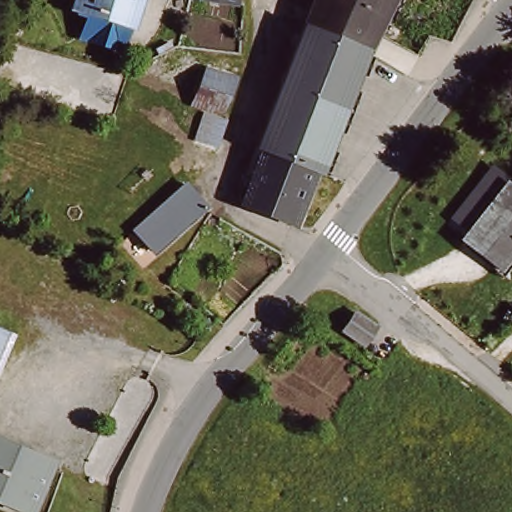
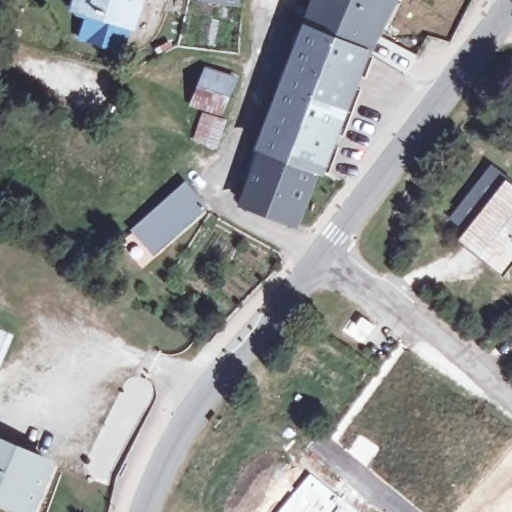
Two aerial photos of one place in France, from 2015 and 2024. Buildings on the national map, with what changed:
unchanged [(127,61),(88,49),(97,24),(79,18),(84,0),(145,0),(127,61)]
unchanged [(239,6),(205,0),(240,0),(239,6)]
unchanged [(373,33),(364,51),(304,27),(314,0),(389,0),(373,33)]
unchanged [(364,51),(318,171),(297,225),(242,205),(263,151),(272,126),(267,124),(304,27),(364,51)]
unchanged [(211,58),(235,65),(231,77),(235,79),(221,113),(192,105),(206,70),(211,58)]
unchanged [(225,122),(217,147),(195,140),(204,115),(225,122)]
unchanged [(154,253),(134,230),(185,185),(205,207),(154,253)]
unchanged [(512,196),(512,245),(501,260),(472,236),(507,192),(512,196)]
unchanged [(364,345),(350,336),(345,332),(356,314),(362,317),(375,327),(364,345)]
unchanged [(0,358),(0,327),(12,332),(0,358)]
unchanged [(35,504),(0,489),(0,436),(54,459),(35,504)]
new [(336,494),(330,501),(336,506),(332,512),(276,512),(310,472),(336,494)]

